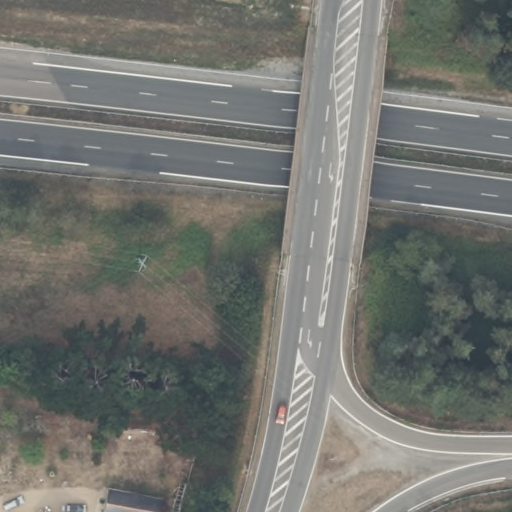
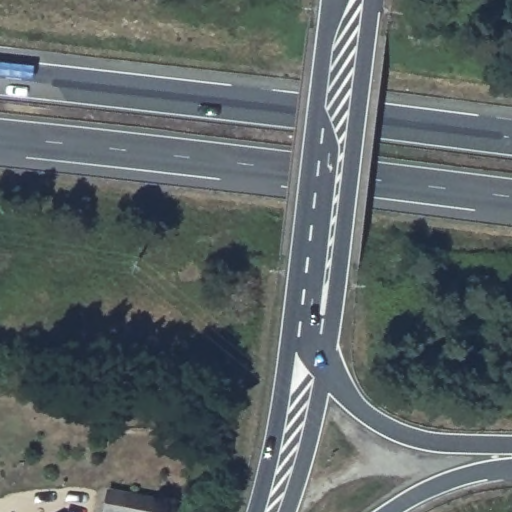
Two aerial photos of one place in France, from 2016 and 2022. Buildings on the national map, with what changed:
unchanged [(160,507),(158,512),(109,512),(114,495),(160,507)]

